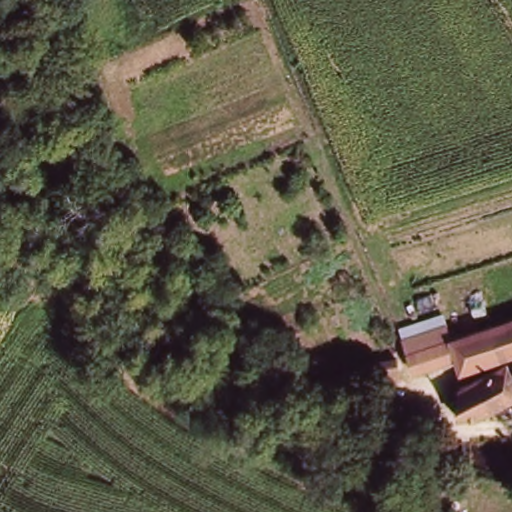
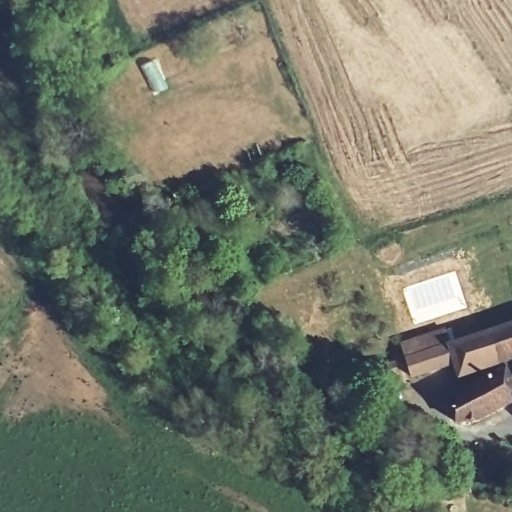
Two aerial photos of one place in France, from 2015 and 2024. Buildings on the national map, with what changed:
unchanged [(501,357),(489,328),(512,320),(512,353),(501,357)]
unchanged [(406,358),(400,343),(442,326),(447,342),(489,328),(501,357),(457,372),(453,358),(412,374),(406,358)]
unchanged [(375,373),(374,359),(398,357),(400,372),(375,373)]
unchanged [(467,383),(512,362),(512,403),(480,418),(452,419),(459,384),(462,384),(467,383)]

